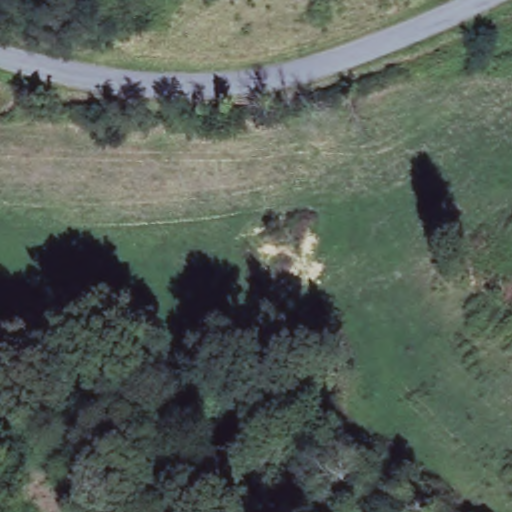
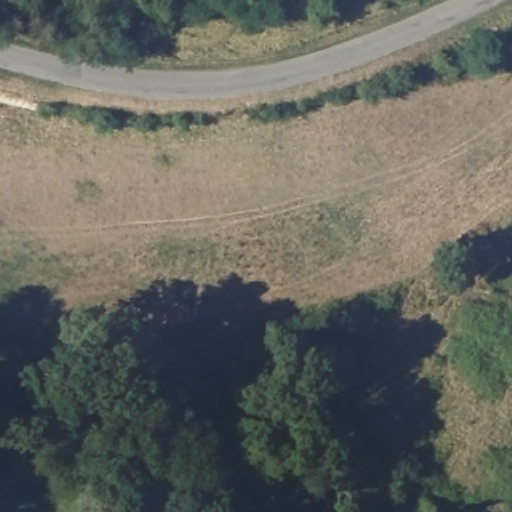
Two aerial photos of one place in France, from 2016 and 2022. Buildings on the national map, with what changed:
[]

